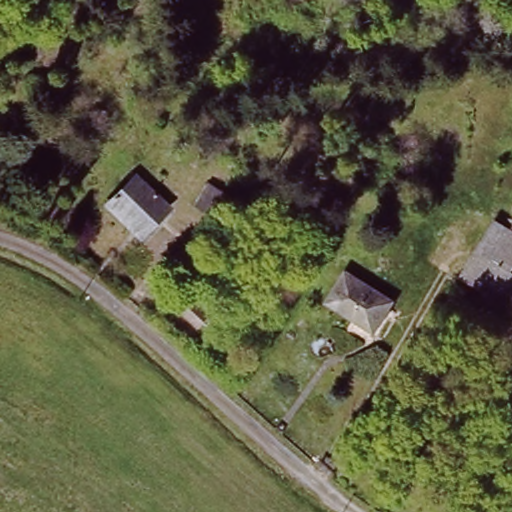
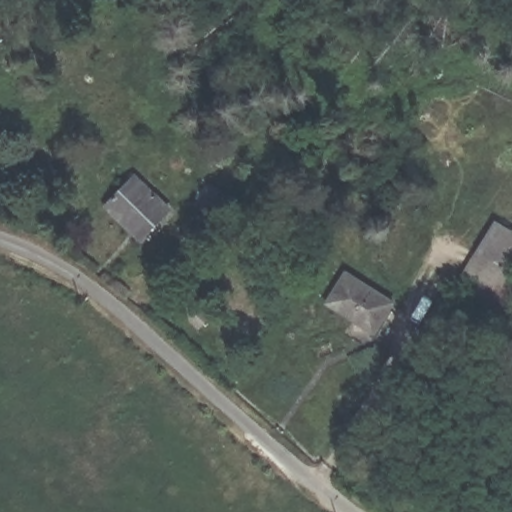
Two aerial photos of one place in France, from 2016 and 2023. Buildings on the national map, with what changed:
unchanged [(107,204),(137,174),(169,208),(140,237),(107,204)]
unchanged [(218,218),(208,212),(197,205),(212,184),(222,190),(232,197),(218,218)]
unchanged [(512,233),(512,265),(507,272),(512,275),(512,288),(500,305),(460,279),(497,223),(512,233)]
unchanged [(368,337),(324,305),(342,275),(383,304),(388,307),(378,321),(368,337)]
unchanged [(185,294),(208,317),(197,329),(175,307),(185,294)]

